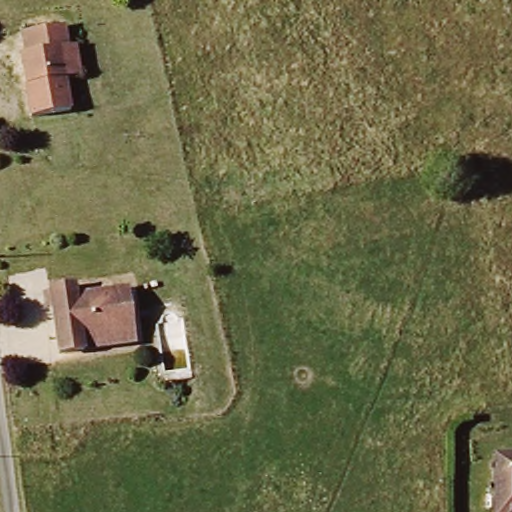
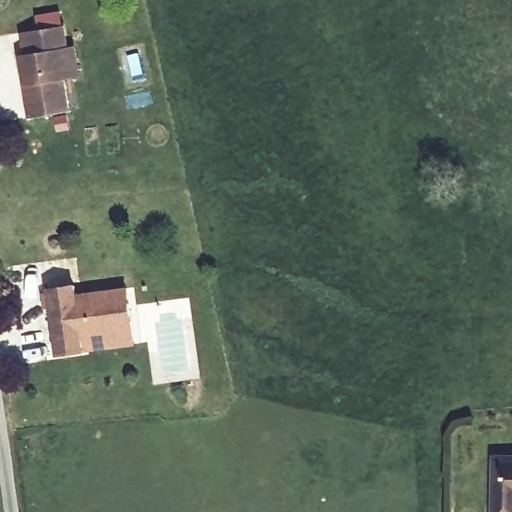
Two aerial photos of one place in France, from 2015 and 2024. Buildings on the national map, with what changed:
unchanged [(28,51),(71,45),(74,68),(66,69),(75,129),(33,136),(24,74),(30,74),(28,51)]
unchanged [(80,300),(128,293),(135,345),(60,355),(50,293),(78,290),(80,300)]
unchanged [(512,512),(497,512),(500,454),(512,454),(512,512)]

